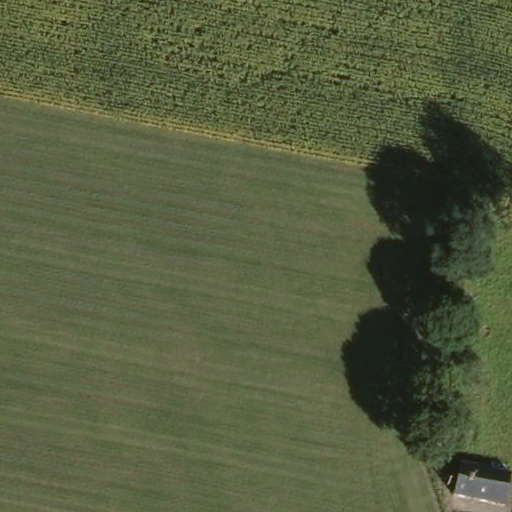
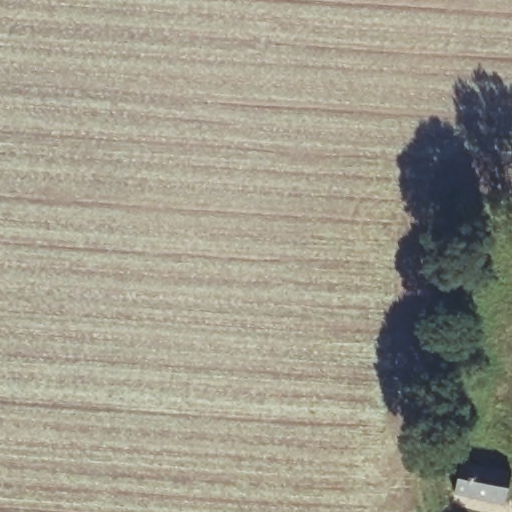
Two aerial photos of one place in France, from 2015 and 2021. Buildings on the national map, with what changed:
unchanged [(503,502),(456,492),(458,490),(459,461),(507,472),(503,502)]

